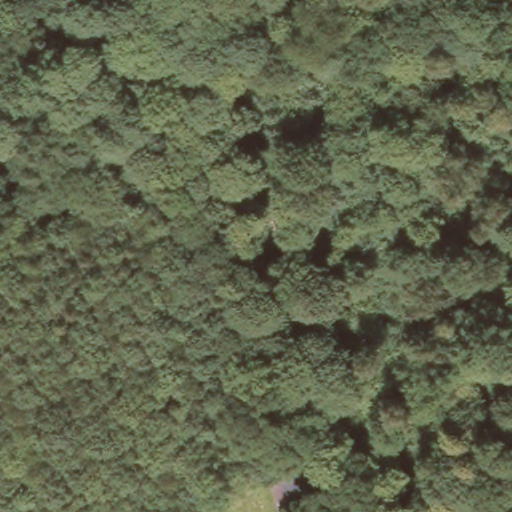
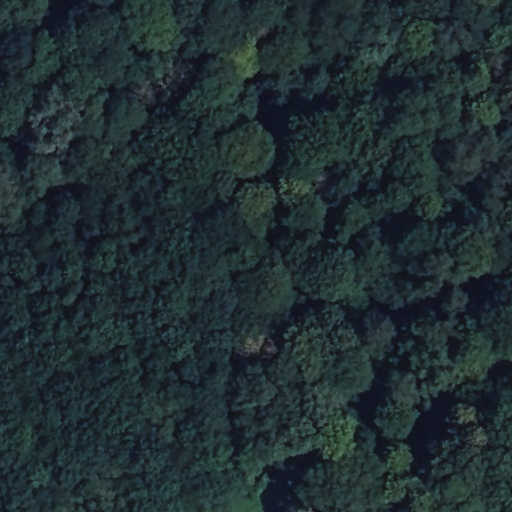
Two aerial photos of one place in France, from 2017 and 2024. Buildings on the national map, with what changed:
unchanged [(266,482),(280,478),(288,511),(285,512),(274,512),(266,482)]

